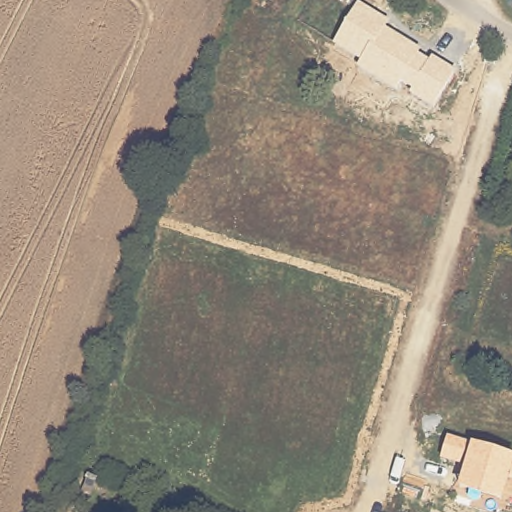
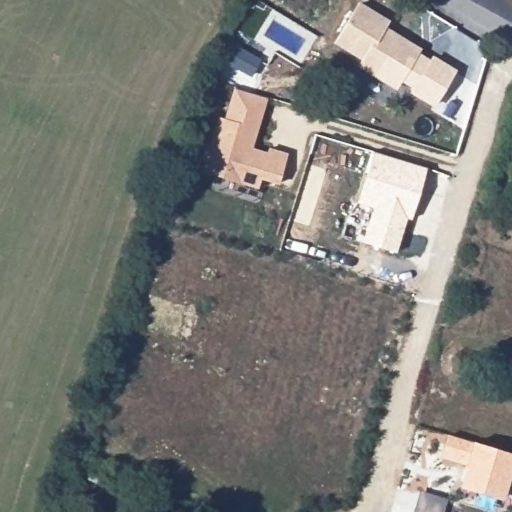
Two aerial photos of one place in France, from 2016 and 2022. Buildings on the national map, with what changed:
unchanged [(391,22),(388,28),(424,50),(421,53),(429,60),(431,56),(458,71),(435,109),(409,94),(411,90),(402,85),(398,91),(355,67),(359,61),(333,44),(359,4),(391,22)]
new [(205,144),(212,141),(220,113),(227,115),(237,85),(258,91),(252,109),(262,112),(248,153),(265,159),(269,146),(287,152),(278,180),(261,175),(258,184),(222,173),(224,165),(206,159),(202,152),(205,144)]
new [(405,218),(394,252),(362,242),(373,207),(363,204),(357,202),(366,172),(373,151),(426,168),(419,189),(410,219),(405,218)]
unchanged [(512,454),(512,481),(509,481),(503,502),(458,489),(464,467),(440,459),(448,435),(472,443),(512,454)]

